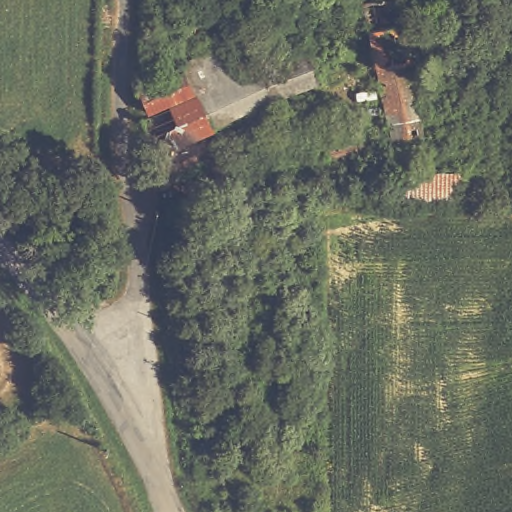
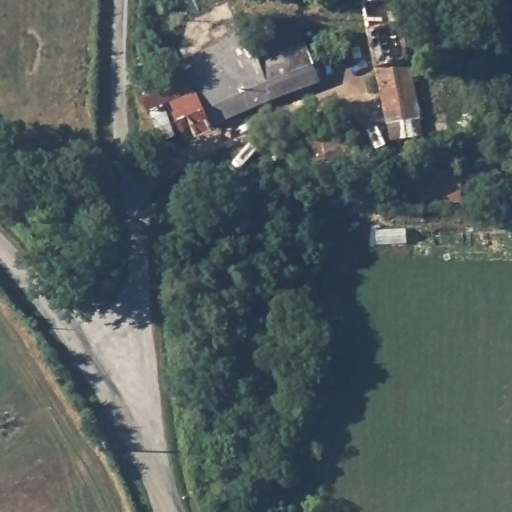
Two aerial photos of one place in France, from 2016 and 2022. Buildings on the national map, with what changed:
unchanged [(423,111),(429,133),(393,143),(361,24),(349,27),(342,3),(354,0),(398,0),(423,111)]
unchanged [(353,29),(359,53),(319,64),(311,40),(353,29)]
unchanged [(259,77),(283,68),(300,63),(309,87),(293,94),(218,128),(205,94),(256,71),(259,77)]
unchanged [(315,162),(310,150),(288,157),(278,136),(299,125),(307,136),(356,129),(360,158),(315,162)]
unchanged [(404,173),(487,179),(490,167),(509,169),(506,205),(402,204),(404,173)]

